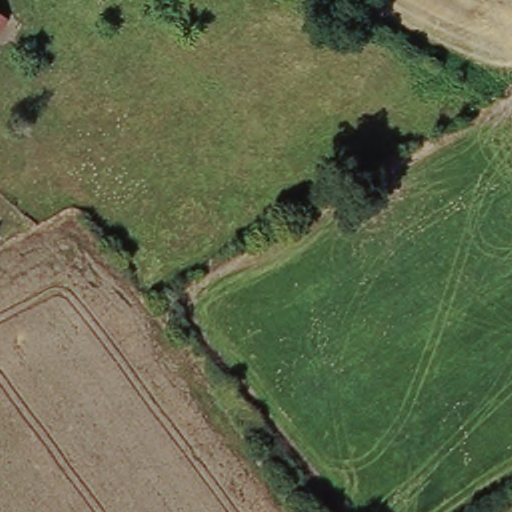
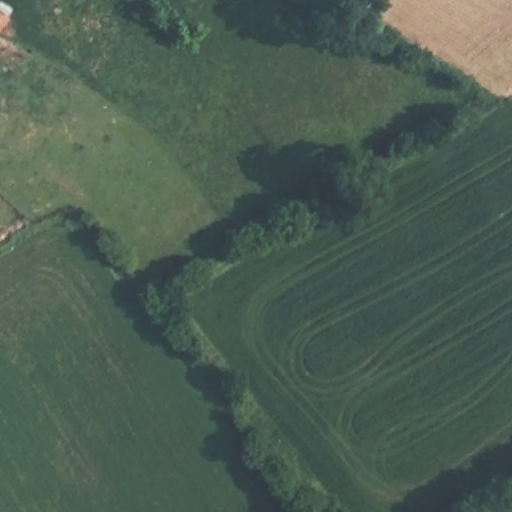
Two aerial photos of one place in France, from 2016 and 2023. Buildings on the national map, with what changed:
unchanged [(0,15),(6,20),(0,29),(0,15)]

